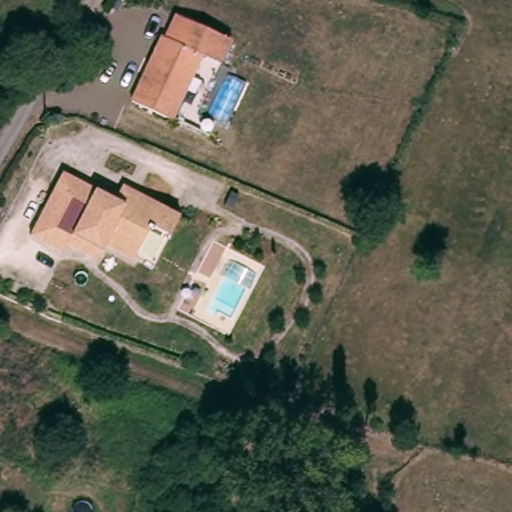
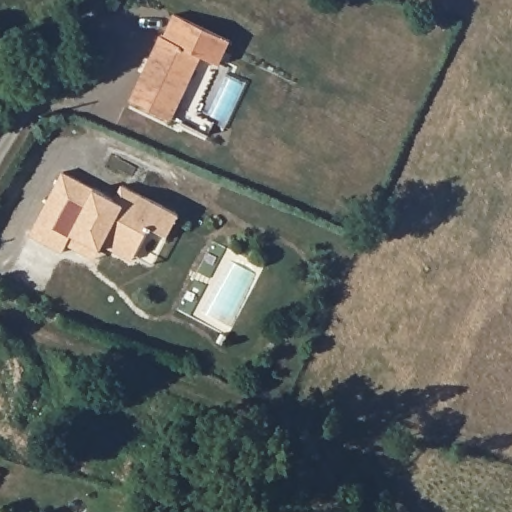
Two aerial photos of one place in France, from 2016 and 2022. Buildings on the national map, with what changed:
unchanged [(166,39),(176,17),(232,41),(221,66),(203,56),(172,123),(133,105),(162,38),(166,39)]
unchanged [(95,251),(72,239),(66,251),(33,233),(62,183),(67,171),(99,189),(119,200),(127,186),(184,217),(177,228),(172,238),(157,265),(139,255),(136,261),(106,244),(101,254),(95,251)]

